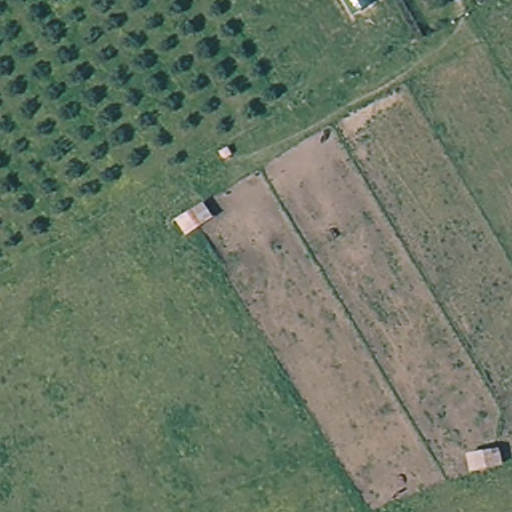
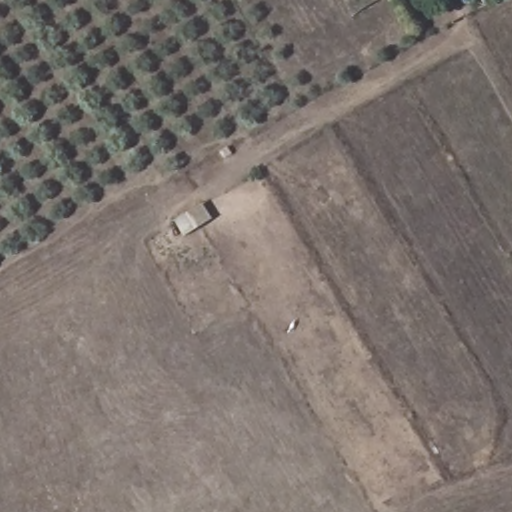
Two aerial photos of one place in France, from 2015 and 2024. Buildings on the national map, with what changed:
unchanged [(353,13),(345,0),(375,0),(353,13)]
unchanged [(208,221),(183,235),(176,223),(201,209),(208,221)]
unchanged [(499,463),(474,472),(469,460),(496,450),(499,463)]

